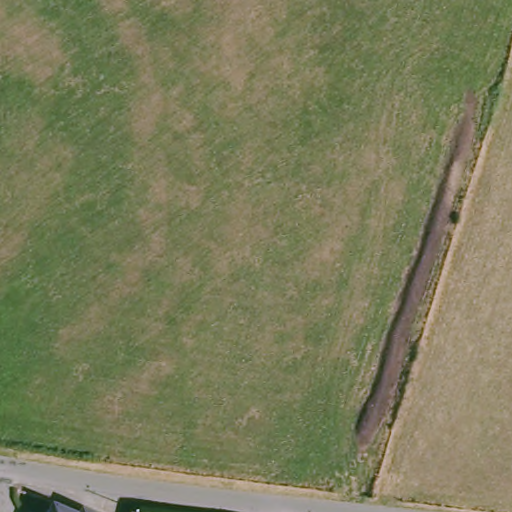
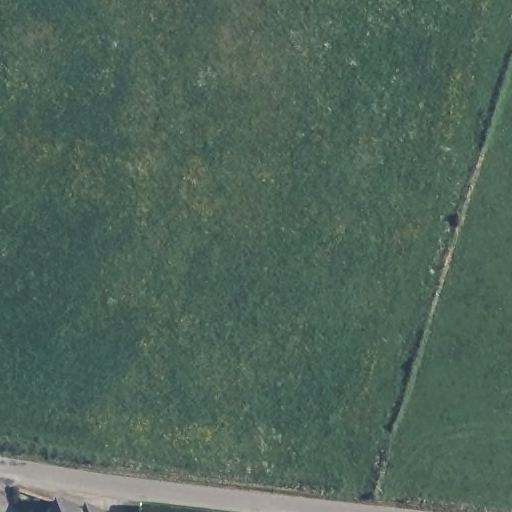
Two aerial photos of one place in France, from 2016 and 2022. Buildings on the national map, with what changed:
unchanged [(75,505),(79,497),(106,512),(40,512),(50,491),(75,505)]

